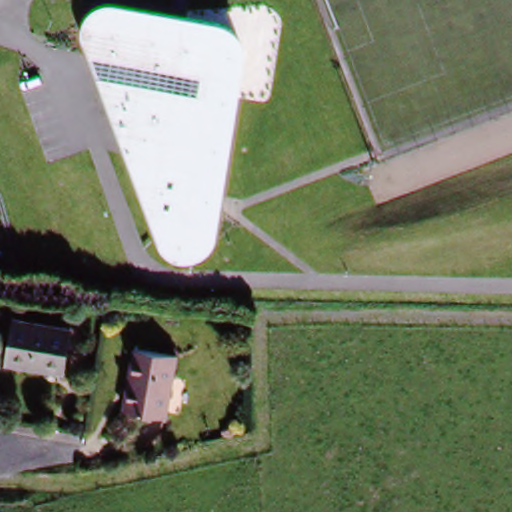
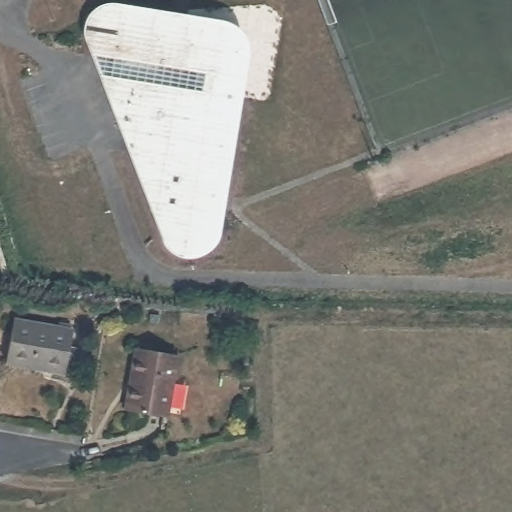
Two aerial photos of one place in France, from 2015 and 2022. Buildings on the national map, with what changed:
unchanged [(214,242),(211,252),(198,264),(187,266),(173,262),(162,251),(81,41),(82,24),(97,8),(117,7),(197,25),(229,32),(238,42),(245,57),(214,242)]
unchanged [(2,366),(11,321),(68,330),(62,375),(2,366)]
unchanged [(120,405),(134,345),(176,356),(161,415),(120,405)]

